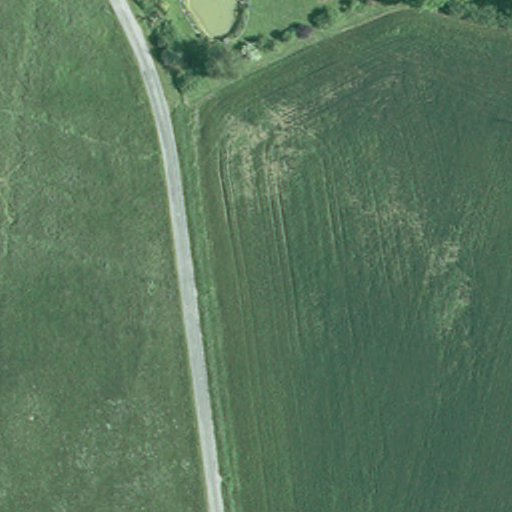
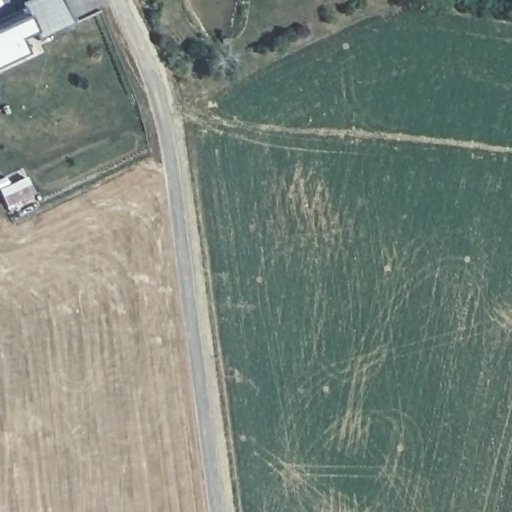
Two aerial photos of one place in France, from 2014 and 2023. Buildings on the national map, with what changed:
new [(21,5),(32,0),(63,0),(74,25),(37,42),(33,33),(19,40),(26,55),(0,67),(0,21),(23,10),(21,5)]

